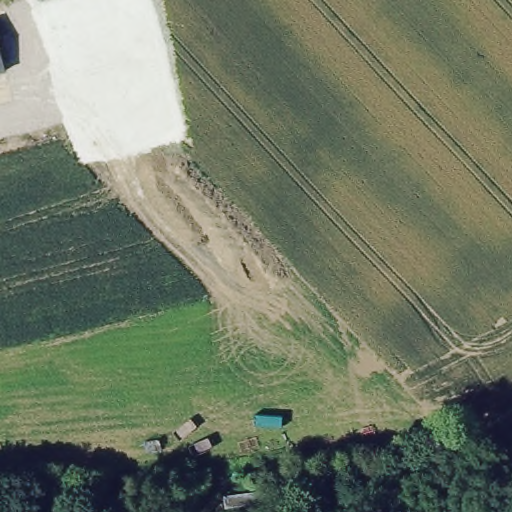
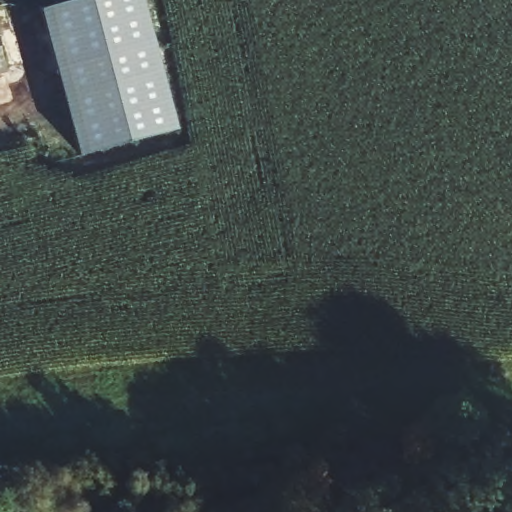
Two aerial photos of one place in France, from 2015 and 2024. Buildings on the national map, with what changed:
new [(78,156),(41,9),(75,0),(142,0),(177,129),(78,156)]
unchanged [(0,72),(0,51),(5,71),(0,72)]

